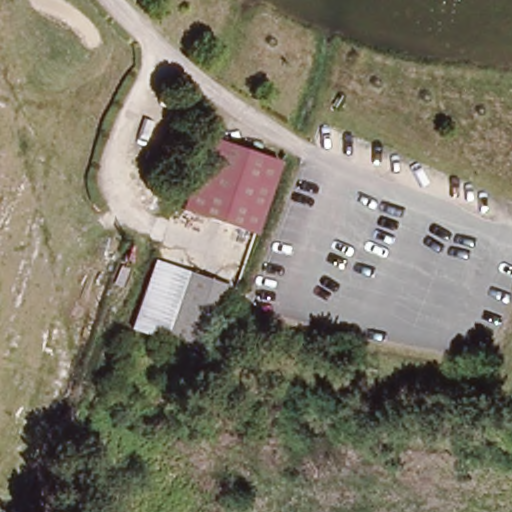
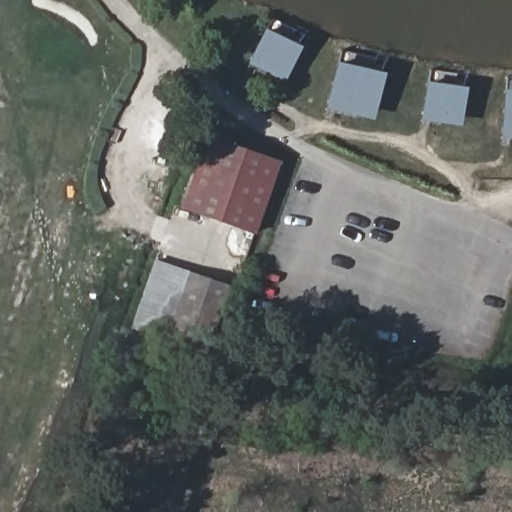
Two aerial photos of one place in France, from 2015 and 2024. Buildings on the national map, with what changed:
new [(300,46),(282,81),(245,62),(267,17),(295,31),(290,42),(300,46)]
new [(365,56),(362,66),(381,71),(370,119),(326,108),(340,50),(365,56)]
new [(435,70),(465,75),(459,125),(419,120),(424,81),(434,82),(435,70)]
new [(505,76),(512,77),(512,137),(501,136),(505,76)]
unchanged [(205,111),(279,137),(255,209),(181,184),(205,111)]
unchanged [(190,277),(167,345),(134,333),(156,266),(190,277)]
unchanged [(190,277),(230,291),(207,358),(167,345),(190,277)]

